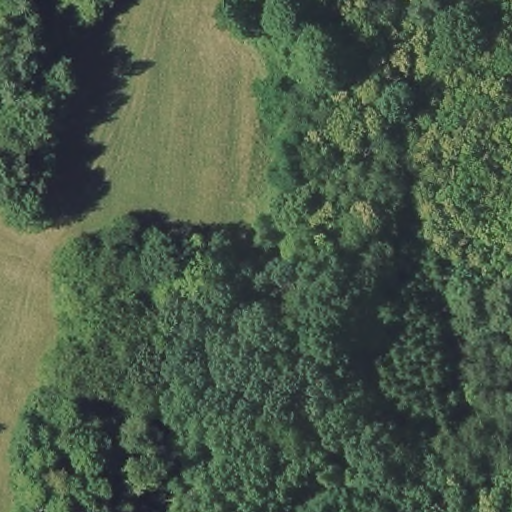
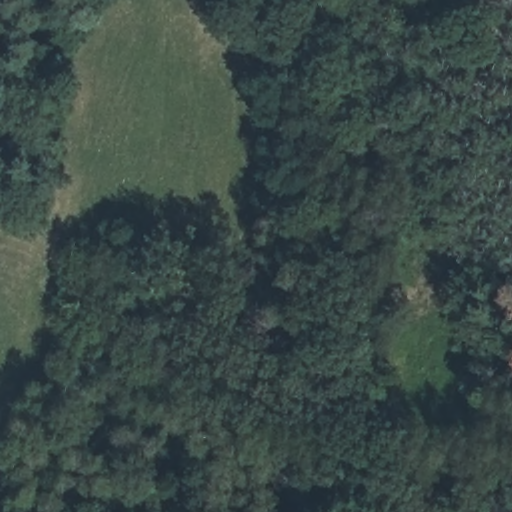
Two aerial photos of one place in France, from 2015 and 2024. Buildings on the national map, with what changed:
[]

